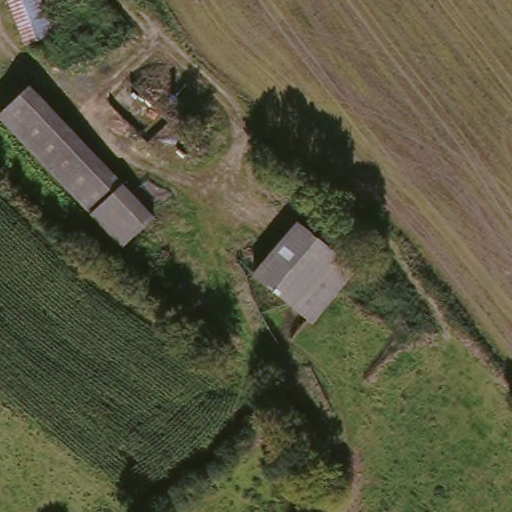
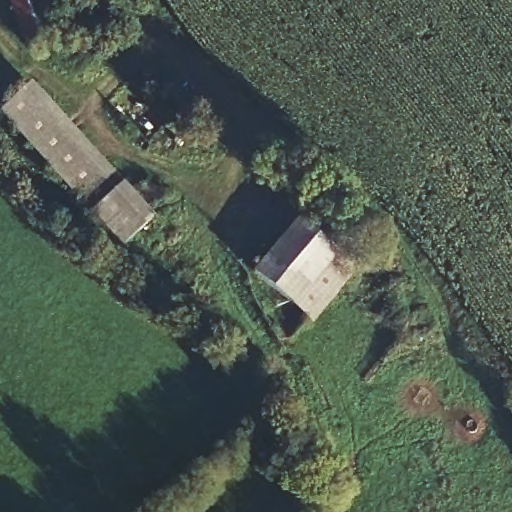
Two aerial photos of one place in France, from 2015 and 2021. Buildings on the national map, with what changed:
unchanged [(43,46),(36,39),(30,43),(5,0),(66,0),(44,16),(46,19),(51,30),(46,32),(52,41),(43,46)]
unchanged [(157,214),(116,252),(0,123),(0,109),(31,84),(157,214)]
unchanged [(353,268),(308,322),(249,273),(298,218),(353,268)]

